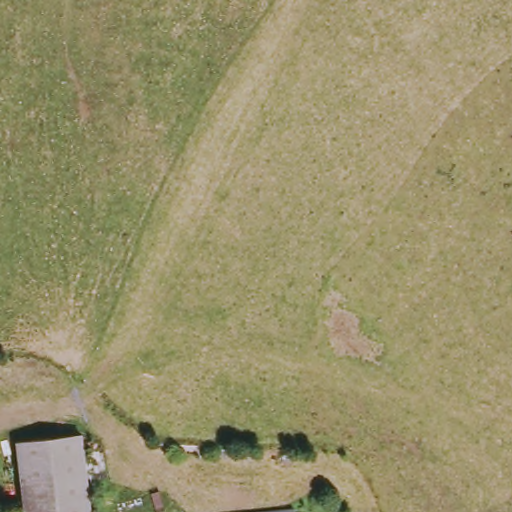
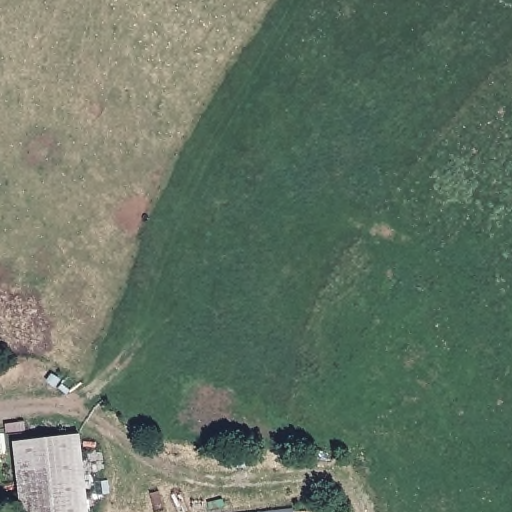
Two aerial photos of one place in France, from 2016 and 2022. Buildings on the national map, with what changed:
unchanged [(21,447),(86,437),(94,512),(28,512),(21,447)]

